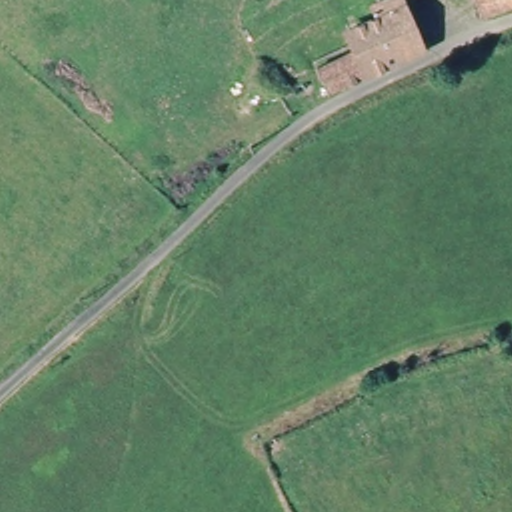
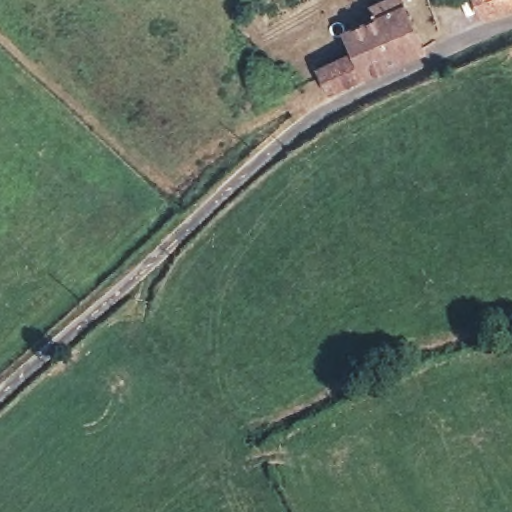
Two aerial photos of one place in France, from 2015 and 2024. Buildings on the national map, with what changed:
unchanged [(317,68),(357,46),(350,33),(377,19),(373,10),(391,1),(390,0),(400,0),(425,53),(332,96),(317,68)]
unchanged [(477,0),(512,0),(512,7),(486,18),(477,0)]

